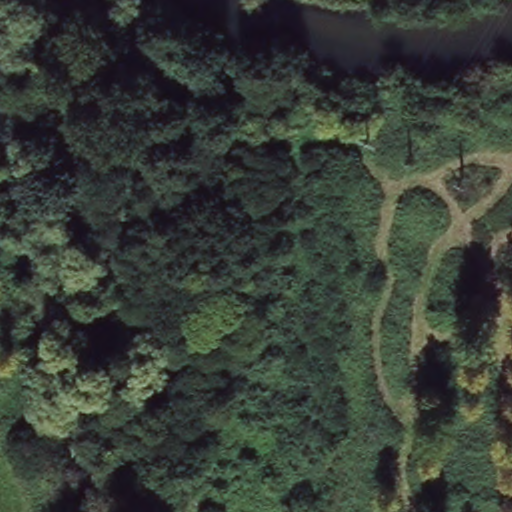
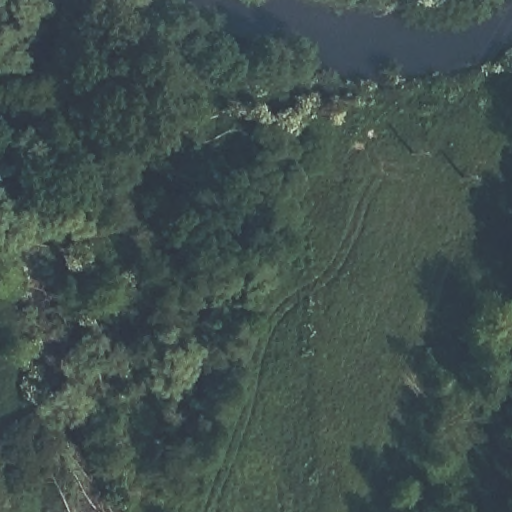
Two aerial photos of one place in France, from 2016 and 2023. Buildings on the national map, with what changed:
[]

